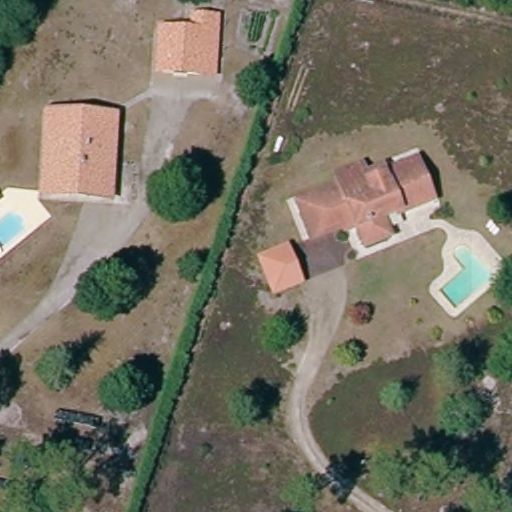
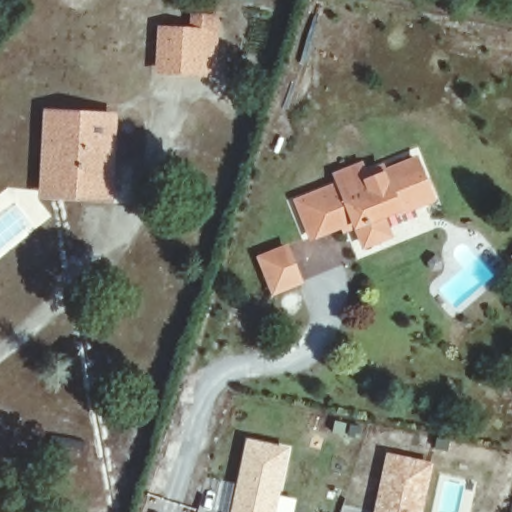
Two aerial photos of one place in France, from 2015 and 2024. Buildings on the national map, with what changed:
unchanged [(3,5),(4,0),(21,0),(19,8),(3,5)]
unchanged [(190,73),(158,71),(160,20),(192,22),(190,73)]
unchanged [(217,25),(212,75),(190,73),(192,22),(217,25)]
unchanged [(41,126),(42,111),(116,114),(116,128),(41,126)]
unchanged [(92,199),(58,199),(39,199),(39,152),(41,126),(116,128),(112,169),(112,200),(92,199)]
unchanged [(425,205),(380,220),(383,239),(356,248),(345,217),(332,221),(337,235),(311,244),(292,194),(382,162),(387,176),(412,166),(425,205)]
unchanged [(296,282),(263,293),(252,255),(281,246),(296,282)]
new [(290,448),(276,512),(232,512),(247,438),(290,448)]
new [(433,464),(423,512),(373,512),(385,453),(433,464)]

